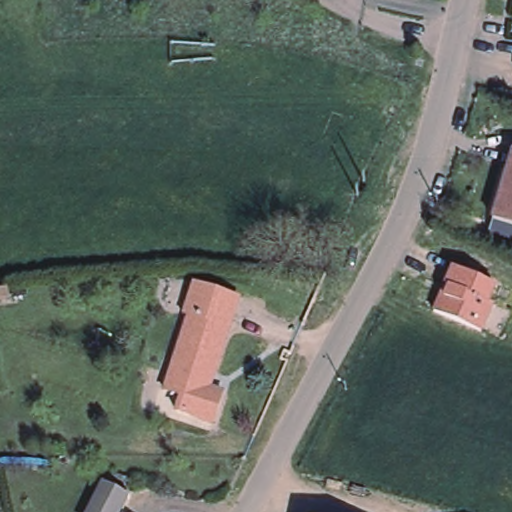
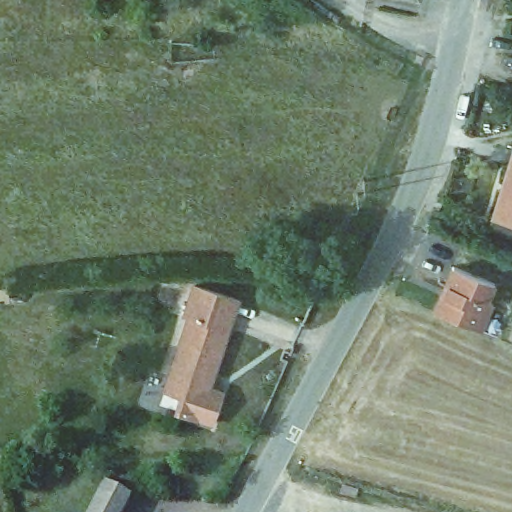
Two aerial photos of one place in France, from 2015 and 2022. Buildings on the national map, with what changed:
unchanged [(512,146),(512,182),(501,179),(512,146)]
unchanged [(493,207),(501,179),(512,182),(512,227),(488,220),(493,207)]
unchanged [(481,330),(434,310),(451,266),(495,284),(481,330)]
unchanged [(183,319),(190,288),(236,298),(217,389),(230,393),(223,424),(186,416),(189,400),(172,397),(190,320),(183,319)]
unchanged [(106,483),(130,494),(122,512),(92,512),(106,483)]

